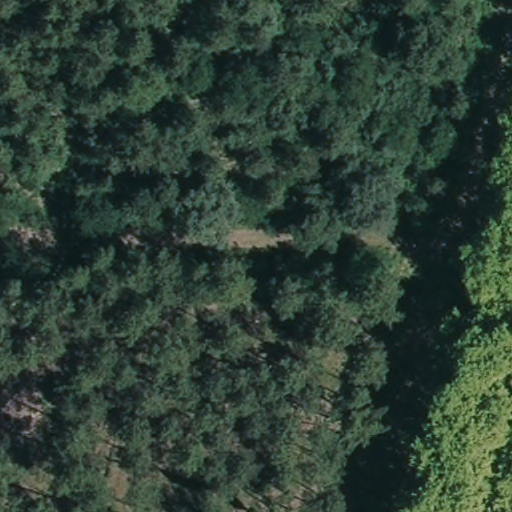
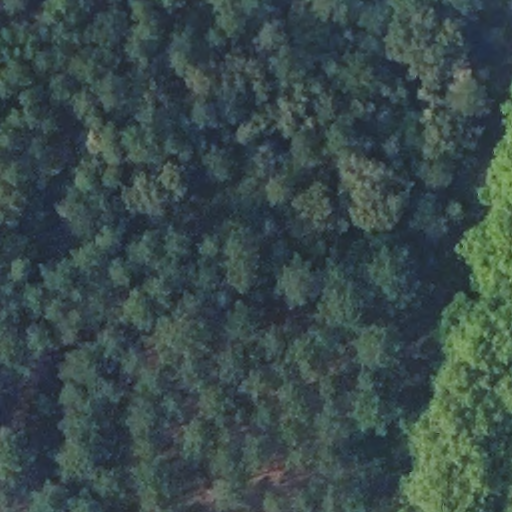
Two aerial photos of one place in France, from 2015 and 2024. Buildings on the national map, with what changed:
[]

